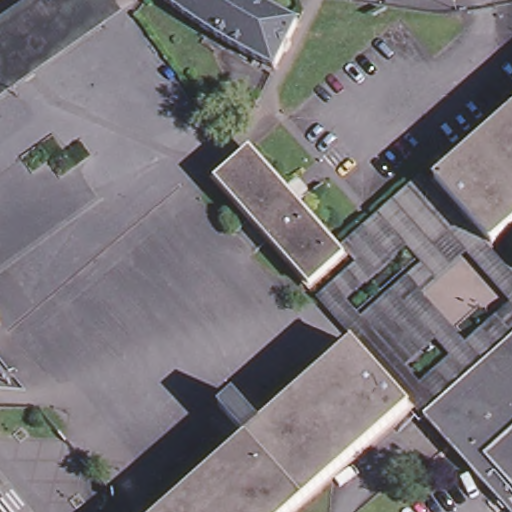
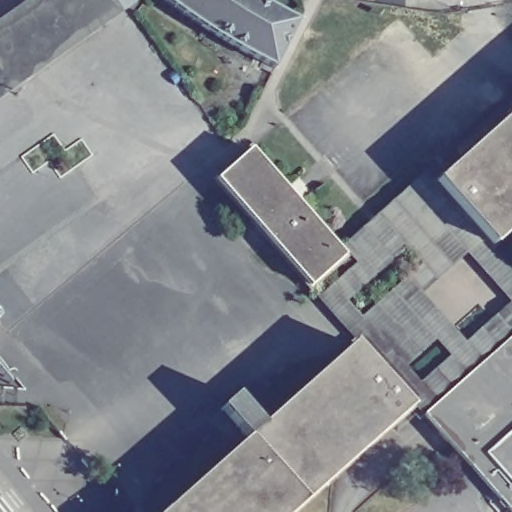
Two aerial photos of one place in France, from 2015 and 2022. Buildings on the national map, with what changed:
unchanged [(19,0),(112,0),(120,11),(0,95),(0,13),(19,0)]
unchanged [(255,1),(293,22),(270,68),(227,42),(173,8),(162,0),(253,0),(255,1)]
unchanged [(428,179),(512,106),(512,223),(482,250),(428,179)]
unchanged [(300,277),(207,177),(245,145),(334,246),(300,277)]
unchanged [(352,338),(317,296),(308,285),(300,277),(334,246),(416,171),(428,179),(482,250),(512,274),(512,321),(407,406),(352,338)]
unchanged [(512,512),(503,512),(407,406),(512,321),(512,512)]
unchanged [(289,512),(157,512),(238,436),(220,408),(235,393),(257,420),(352,338),(407,406),(289,512)]

